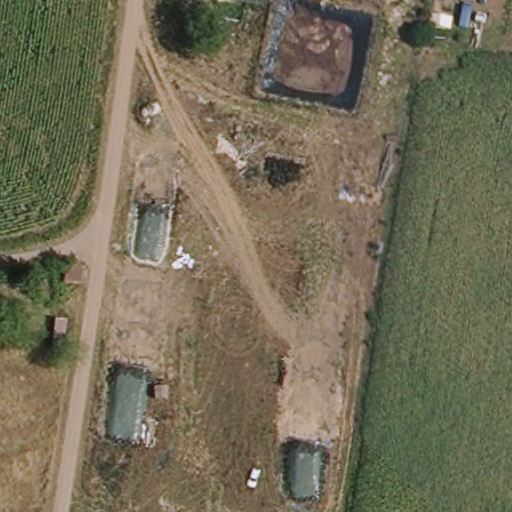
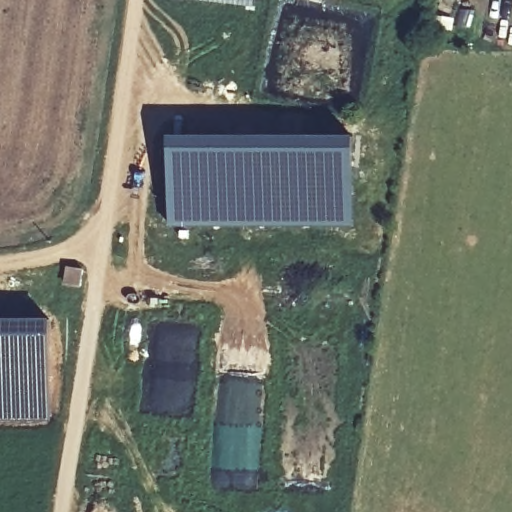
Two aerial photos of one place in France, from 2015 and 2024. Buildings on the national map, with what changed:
new [(353,134),(354,229),(189,228),(168,227),(167,133),(353,134)]
new [(50,317),(50,421),(0,421),(0,317),(50,317)]

